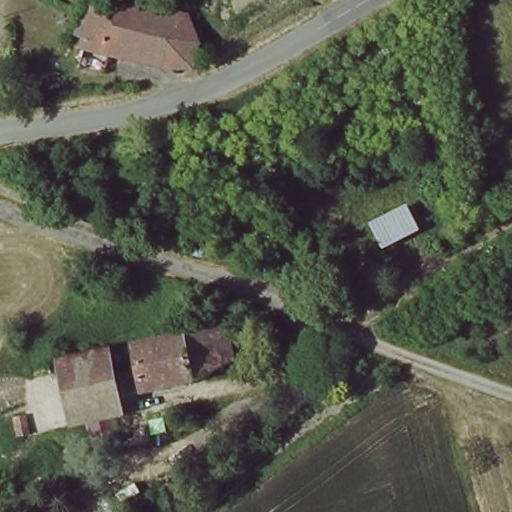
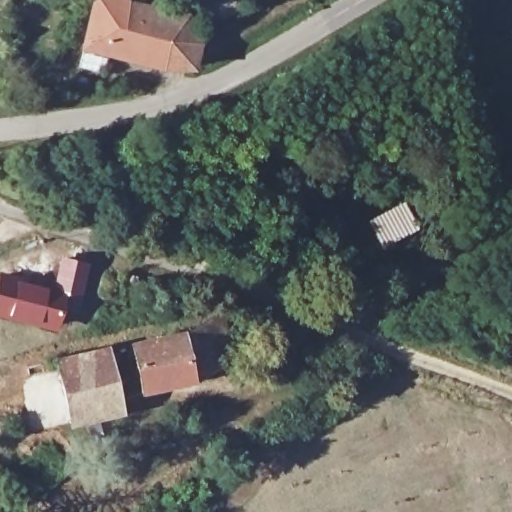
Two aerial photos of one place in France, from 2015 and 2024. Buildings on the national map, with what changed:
unchanged [(170,61),(94,36),(95,29),(83,22),(98,0),(138,0),(186,15),(170,61)]
unchanged [(186,15),(199,17),(196,70),(170,61),(186,15)]
unchanged [(411,225),(381,239),(369,217),(401,204),(411,225)]
new [(60,255),(90,262),(80,299),(66,295),(55,330),(0,318),(0,274),(50,287),(60,255)]
unchanged [(229,352),(209,360),(211,369),(194,378),(138,388),(129,347),(173,335),(181,325),(218,313),(229,352)]
unchanged [(63,390),(57,359),(105,348),(110,379),(63,390)]
unchanged [(115,409),(68,418),(63,390),(110,379),(115,409)]
unchanged [(20,405),(24,420),(10,422),(9,407),(20,405)]

